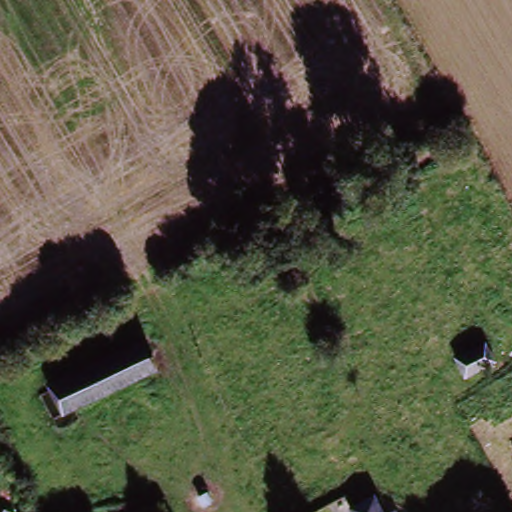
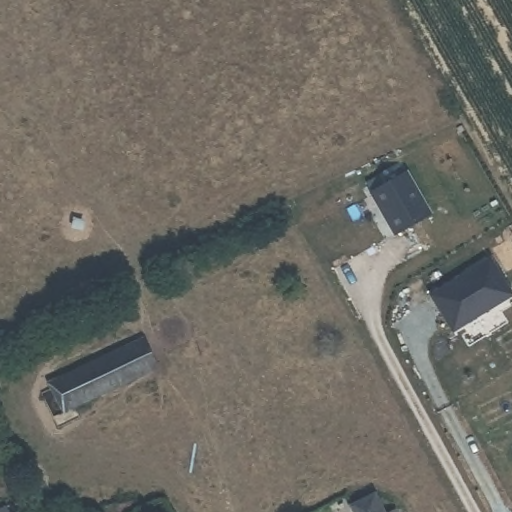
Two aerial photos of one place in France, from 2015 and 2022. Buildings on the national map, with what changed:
new [(410,168),(432,212),(395,231),(372,187),(410,168)]
new [(490,257),(512,291),(452,329),(431,294),(490,257)]
unchanged [(42,374),(62,365),(67,373),(140,339),(155,369),(62,414),(42,374)]
demolished [(478,341),(485,356),(459,369),(450,354),(478,341)]
unchanged [(377,505),(381,512),(362,512),(377,505)]

